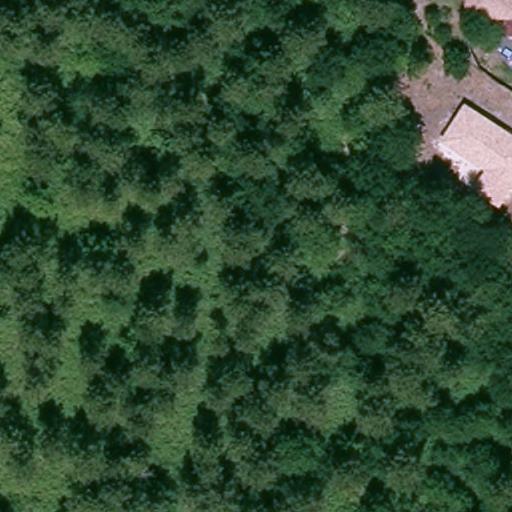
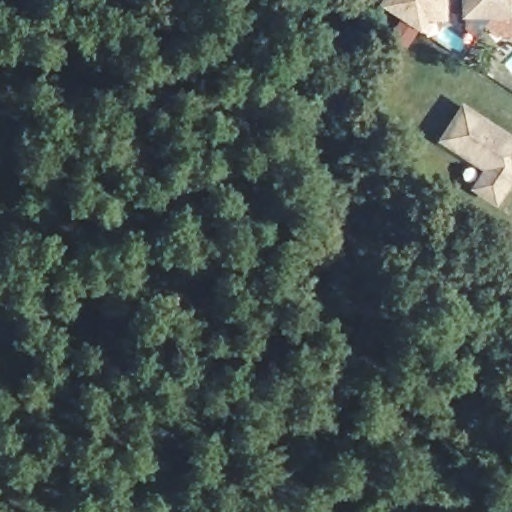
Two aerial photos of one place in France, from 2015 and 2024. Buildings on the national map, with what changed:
new [(429,22),(422,33),(381,6),(385,0),(448,0),(449,20),(429,22)]
unchanged [(466,20),(465,0),(512,0),(512,17),(511,17),(466,20)]
unchanged [(465,104),(512,134),(512,187),(500,211),(472,193),(484,171),(441,140),(465,104)]

